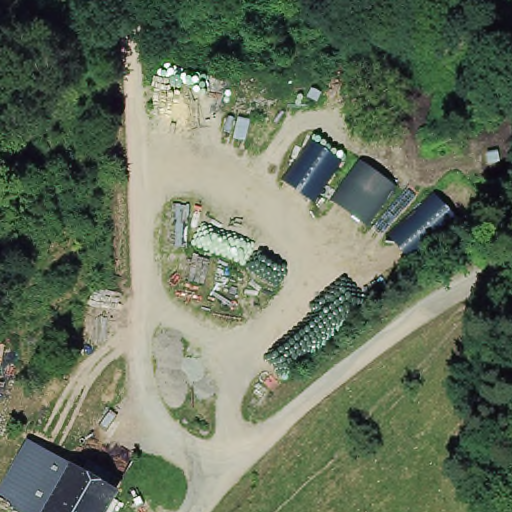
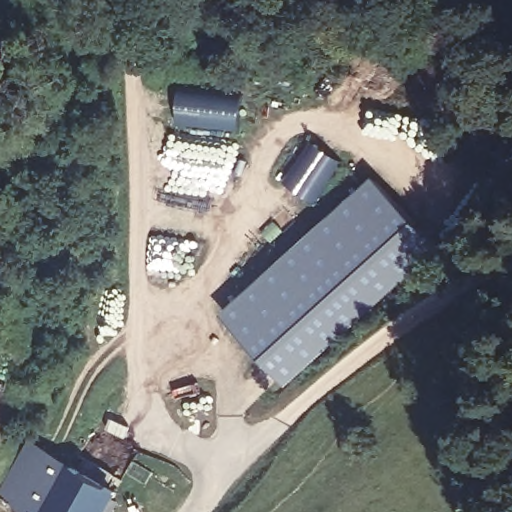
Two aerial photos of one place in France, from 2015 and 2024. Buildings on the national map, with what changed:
new [(248,97),(242,134),(178,125),(183,87),(248,97)]
unchanged [(311,201),(283,181),(314,141),(341,160),(311,201)]
new [(442,247),(285,387),(223,312),(374,177),(442,247)]
unchanged [(0,502),(0,489),(29,437),(75,461),(44,512),(17,512),(0,502)]
unchanged [(105,512),(44,512),(75,461),(119,489),(105,512)]

